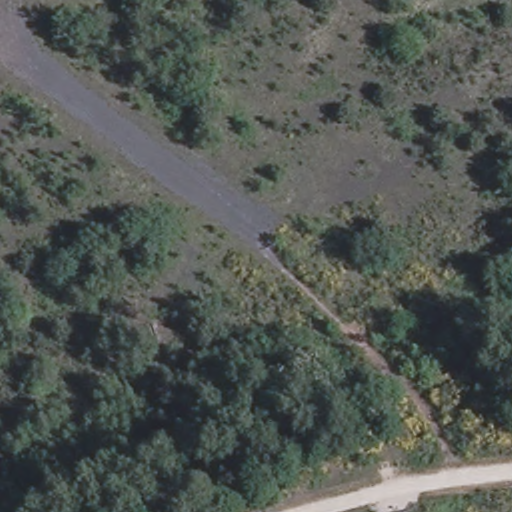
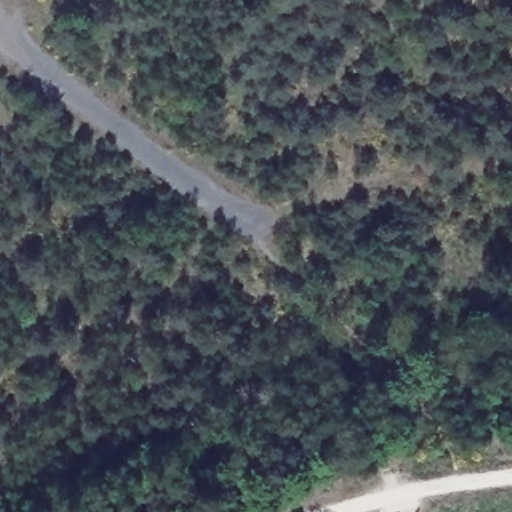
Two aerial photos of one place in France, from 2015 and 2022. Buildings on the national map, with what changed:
[]

